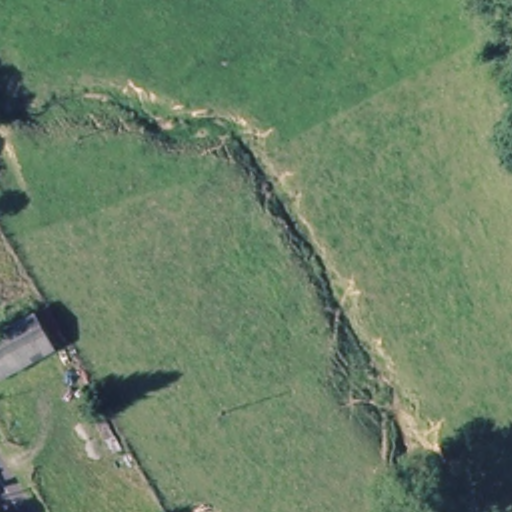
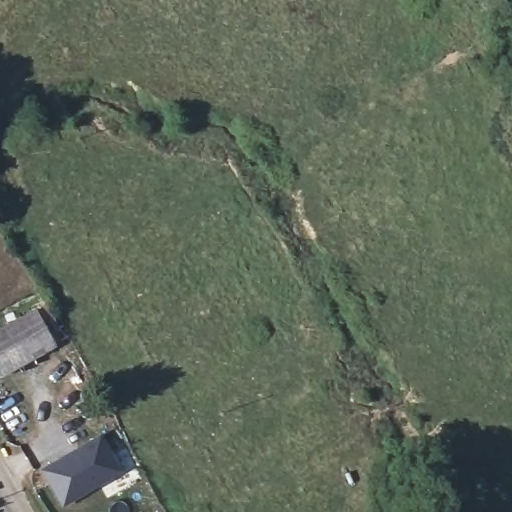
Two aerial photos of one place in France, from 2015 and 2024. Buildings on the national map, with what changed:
unchanged [(54,346),(0,375),(0,330),(34,312),(54,346)]
new [(124,473),(63,508),(40,470),(100,435),(124,473)]

